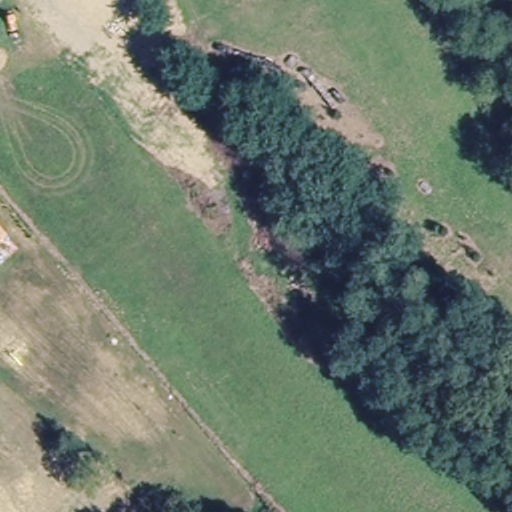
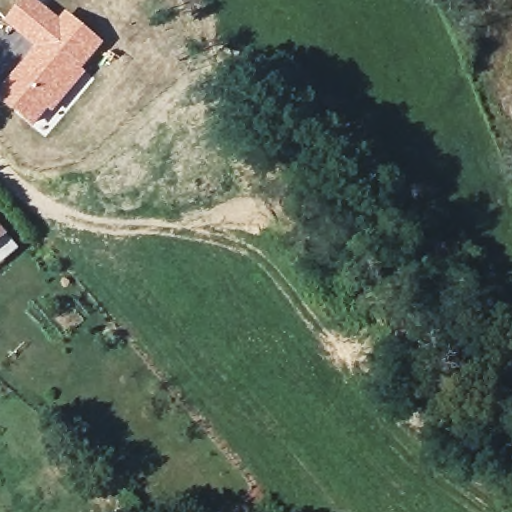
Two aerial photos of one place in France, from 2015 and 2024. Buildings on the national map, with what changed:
new [(4,21),(22,0),(38,0),(59,18),(66,11),(105,44),(84,71),(87,74),(52,114),(35,129),(0,99),(0,87),(34,47),(4,21)]
unchanged [(0,241),(0,227),(7,236),(0,241)]

